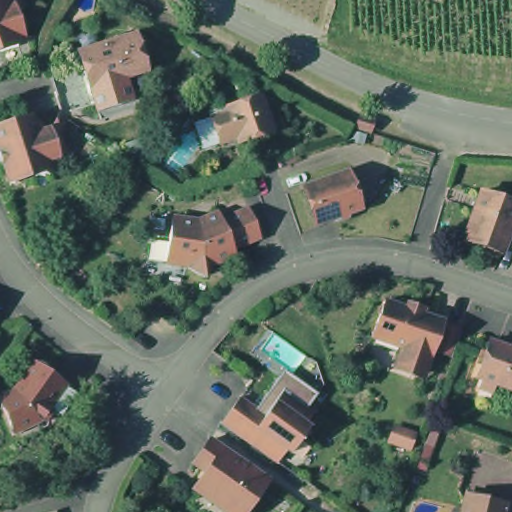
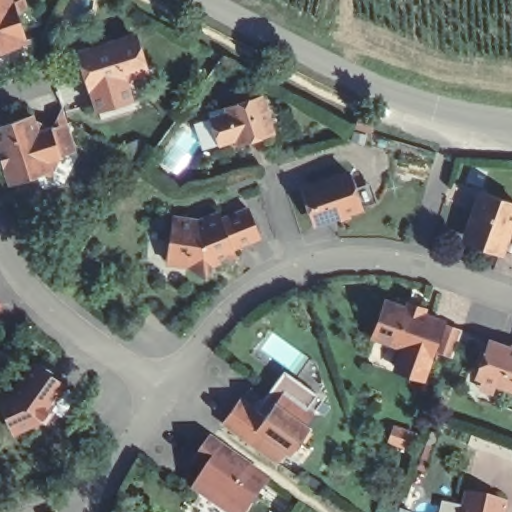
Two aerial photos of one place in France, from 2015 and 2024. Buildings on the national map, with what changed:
unchanged [(43,45),(0,59),(0,0),(25,0),(31,19),(35,31),(38,30),(43,45)]
unchanged [(93,91),(85,62),(93,47),(134,35),(146,71),(128,76),(129,81),(93,91)]
unchanged [(242,145),(240,139),(223,145),(214,117),(231,112),(230,107),(266,95),(278,132),(242,145)]
unchanged [(0,158),(0,122),(25,114),(47,127),(63,121),(72,149),(55,154),(48,169),(32,174),(8,182),(5,176),(0,158)]
unchanged [(373,122),(371,131),(356,126),(359,117),(373,122)]
unchanged [(356,213),(316,226),(304,193),(344,178),(356,213)]
unchanged [(512,203),(512,221),(502,250),(465,237),(481,192),(512,203)]
unchanged [(214,262),(207,276),(193,267),(168,262),(175,218),(196,220),(219,212),(222,219),(250,207),(261,235),(233,247),(236,253),(214,262)]
unchanged [(434,350),(426,375),(398,366),(404,347),(374,337),(387,300),(407,307),(409,302),(426,308),(424,313),(444,321),(443,322),(462,330),(452,356),(434,350)]
unchanged [(484,350),(494,353),(500,337),(512,341),(512,381),(510,380),(504,398),(472,387),(484,350)]
unchanged [(21,436),(16,426),(12,427),(0,400),(0,390),(11,385),(29,357),(34,360),(36,357),(48,365),(45,368),(62,380),(71,387),(46,423),(21,436)]
unchanged [(295,453),(291,451),(283,462),(228,421),(246,395),(273,415),(291,391),(320,412),(311,423),(315,427),(313,428),(316,431),(309,442),(306,438),(295,453)]
unchanged [(384,445),(391,422),(419,431),(412,452),(384,445)]
unchanged [(193,505),(201,493),(194,488),(208,471),(195,461),(201,452),(211,437),(269,482),(246,512),(204,512),(193,505)]
unchanged [(427,473),(414,471),(421,442),(434,447),(427,473)]
unchanged [(503,512),(461,512),(466,492),(506,501),(503,512)]
unchanged [(58,512),(52,512),(58,511),(58,512)]

